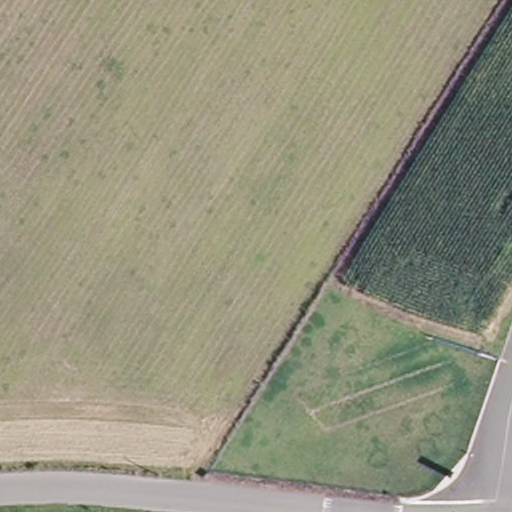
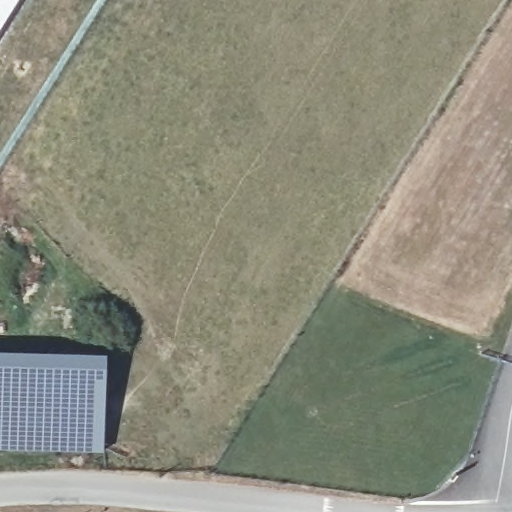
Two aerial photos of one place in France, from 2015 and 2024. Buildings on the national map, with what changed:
unchanged [(0,28),(0,0),(18,0),(0,28)]
new [(104,452),(0,450),(0,352),(105,356),(104,452)]

